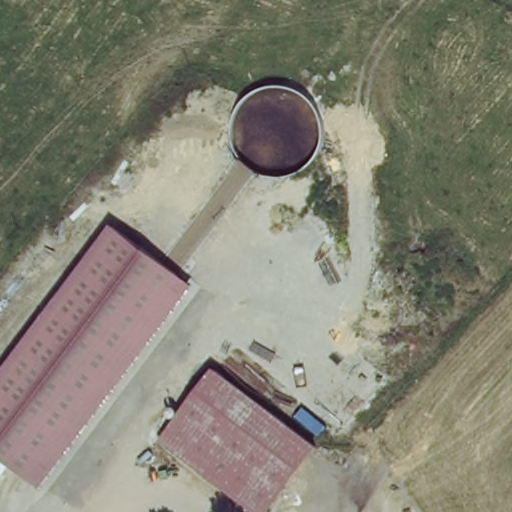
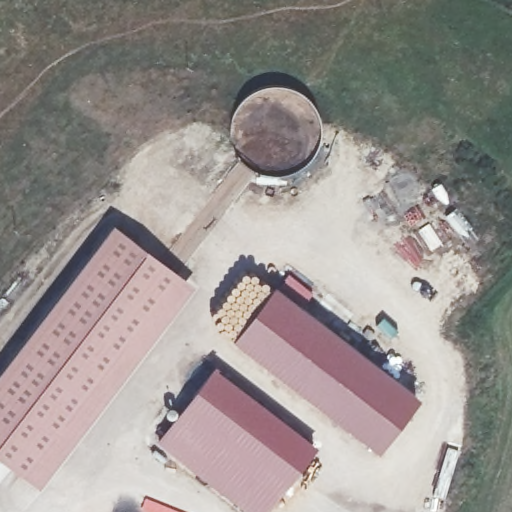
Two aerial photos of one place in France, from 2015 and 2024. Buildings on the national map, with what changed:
unchanged [(193,287),(38,487),(0,459),(0,373),(113,225),(193,287)]
new [(231,339),(274,286),(419,397),(378,451),(231,339)]
unchanged [(166,436),(220,364),(320,442),(264,512),(259,512),(166,436)]

